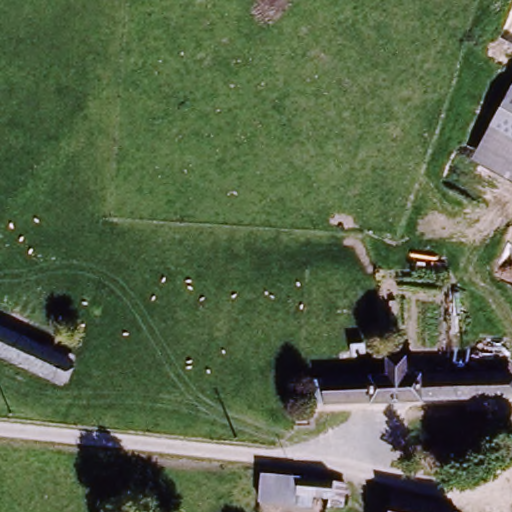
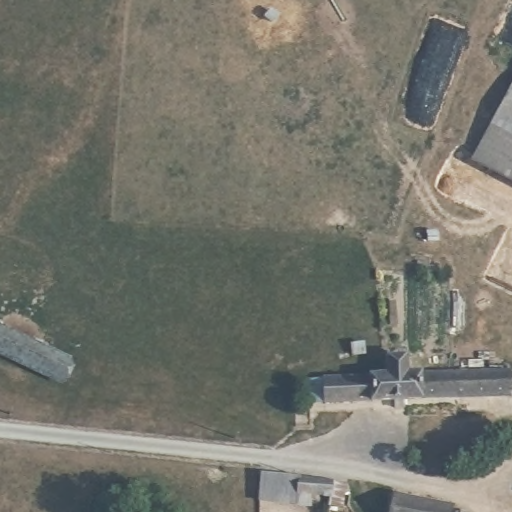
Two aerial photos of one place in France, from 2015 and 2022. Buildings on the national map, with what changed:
unchanged [(512,93),(512,175),(477,156),(512,93)]
unchanged [(65,395),(0,366),(0,330),(74,365),(65,395)]
unchanged [(322,388),(386,385),(386,367),(410,365),(410,373),(410,383),(512,380),(512,408),(322,412),(322,388)]
unchanged [(352,493),(351,508),(257,501),(259,482),(352,493)]
unchanged [(445,512),(391,512),(394,501),(445,512)]

